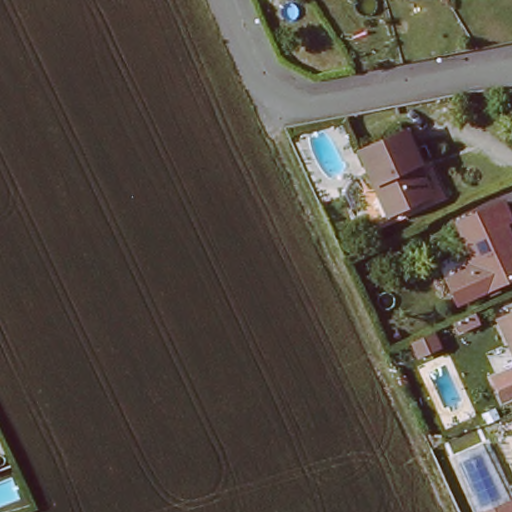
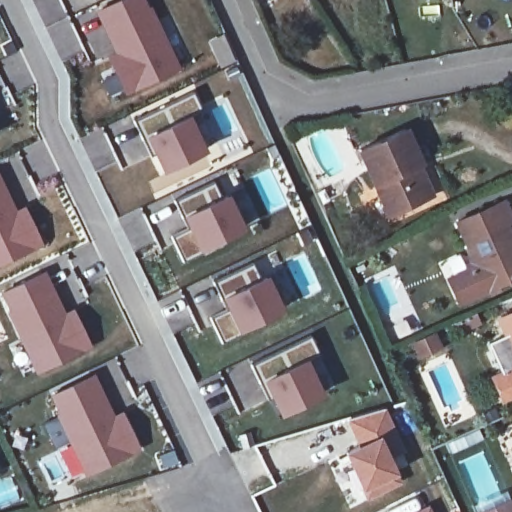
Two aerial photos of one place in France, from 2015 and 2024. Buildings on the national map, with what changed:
new [(95,12),(119,0),(146,0),(181,69),(126,97),(106,57),(115,52),(95,12)]
new [(207,151),(162,173),(152,153),(149,155),(132,121),(192,91),(202,110),(188,115),(207,151)]
unchanged [(411,136),(421,159),(407,165),(421,197),(385,214),(360,159),(411,136)]
new [(16,209),(25,205),(44,245),(0,265),(0,177),(16,209)]
new [(229,193),(245,227),(199,251),(184,260),(172,236),(188,229),(182,215),(175,201),(212,183),(220,197),(229,193)]
new [(456,306),(444,277),(465,268),(469,257),(455,222),(505,200),(508,208),(460,228),(487,292),(456,306)]
unchanged [(512,209),(512,231),(510,231),(512,238),(512,282),(487,292),(460,228),(511,206),(512,209)]
new [(267,273),(285,310),(237,333),(221,341),(210,317),(226,309),(220,296),(215,281),(251,264),(257,278),(267,273)]
new [(45,271),(65,312),(73,308),(92,347),(36,374),(0,297),(0,292),(45,271)]
unchanged [(512,339),(503,318),(512,314),(512,339)]
new [(326,394),(281,417),(270,396),(266,398),(248,362),(310,335),(319,353),(307,357),(326,394)]
unchanged [(496,378),(512,371),(512,392),(503,395),(496,378)]
new [(114,415),(122,410),(142,450),(85,477),(46,396),(94,375),(114,415)]
unchanged [(512,512),(488,512),(512,501),(512,512)]
new [(427,510),(428,512),(421,512),(427,510)]

